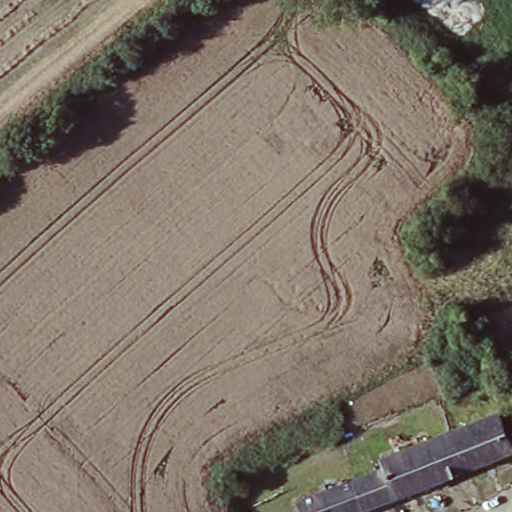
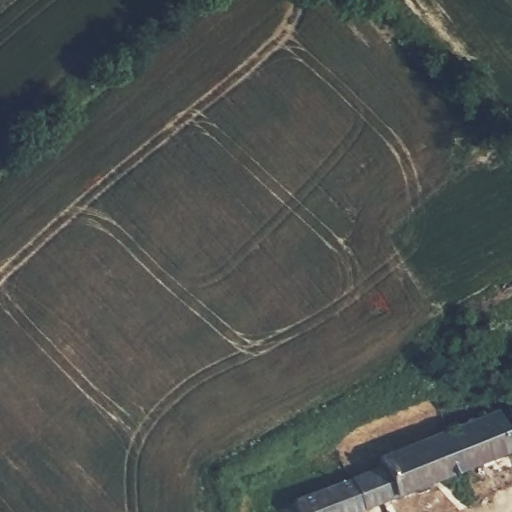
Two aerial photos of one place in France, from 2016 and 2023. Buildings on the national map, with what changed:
unchanged [(512,450),(357,512),(303,512),(299,498),(384,466),(380,455),(499,411),(512,442),(512,450)]

